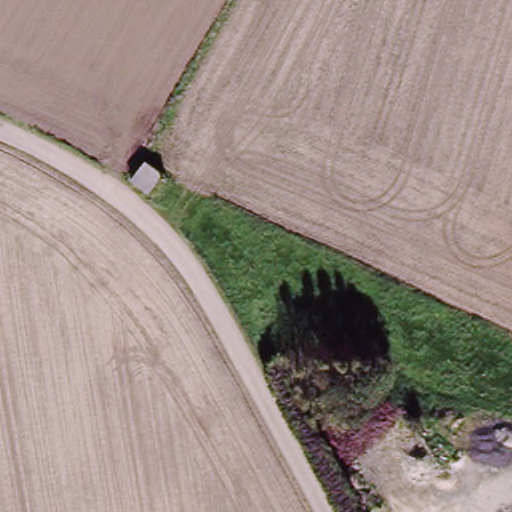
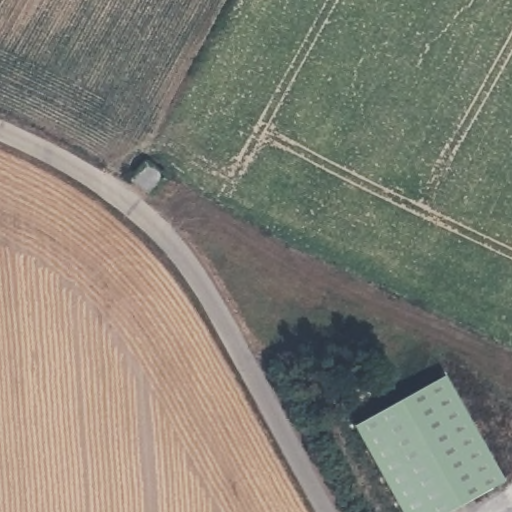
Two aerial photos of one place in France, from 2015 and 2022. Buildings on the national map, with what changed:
new [(447,378),(507,481),(445,512),(408,512),(359,428),(447,378)]

